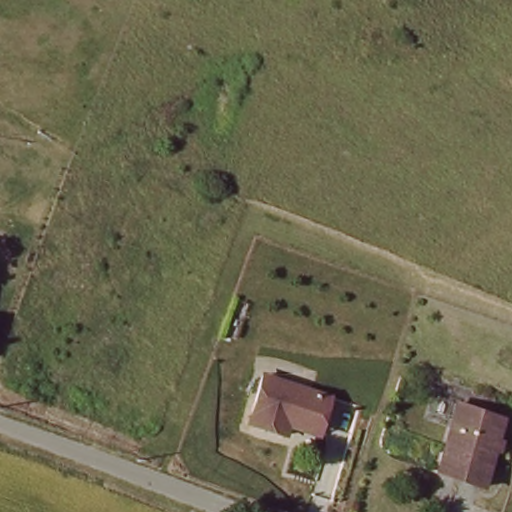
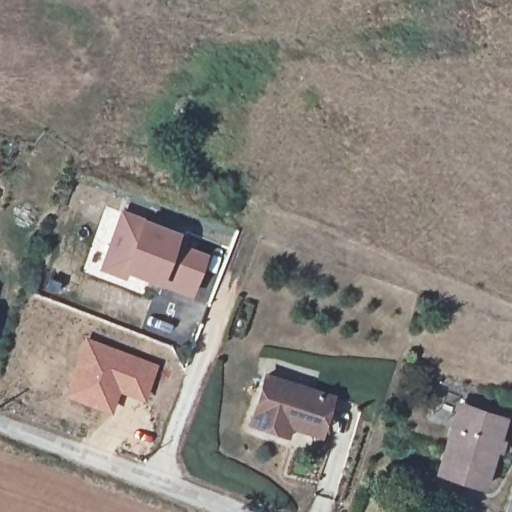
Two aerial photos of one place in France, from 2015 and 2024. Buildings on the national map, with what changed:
new [(192,296),(160,281),(128,270),(125,279),(99,268),(122,209),(143,218),(182,233),(179,240),(209,253),(192,296)]
new [(143,401),(119,393),(111,413),(62,394),(87,335),(159,365),(143,401)]
unchanged [(268,373),(344,397),(331,441),(299,430),(295,440),(251,424),(268,373)]
unchanged [(489,486),(443,472),(456,426),(463,402),(468,404),(509,416),(489,486)]

